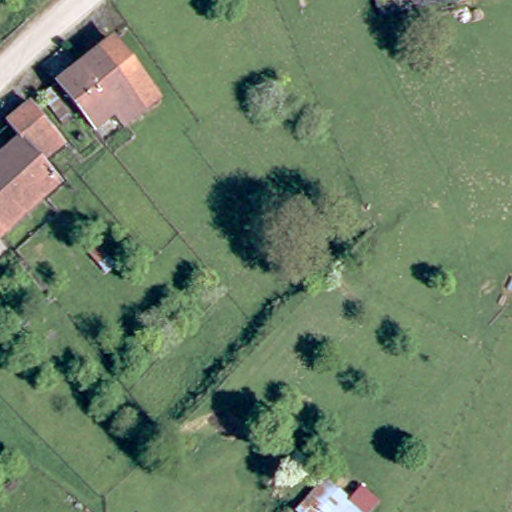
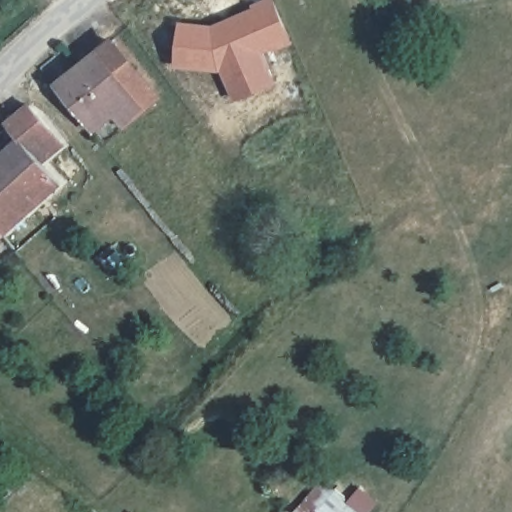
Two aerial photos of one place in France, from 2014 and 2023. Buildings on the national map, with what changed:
new [(219,66),(187,63),(188,51),(174,51),(177,25),(216,26),(266,2),(286,45),(269,50),(267,47),(256,52),(271,79),(233,97),(219,66)]
unchanged [(116,42),(166,99),(154,110),(104,52),(116,42)]
unchanged [(52,95),(62,86),(104,52),(154,110),(132,129),(120,115),(100,132),(77,105),(67,112),(52,95)]
unchanged [(0,229),(0,158),(22,139),(10,126),(34,107),(67,143),(46,162),(64,183),(6,235),(0,229)]
unchanged [(0,240),(0,229),(6,235),(0,240)]
unchanged [(324,474),(357,512),(297,512),(324,474)]

